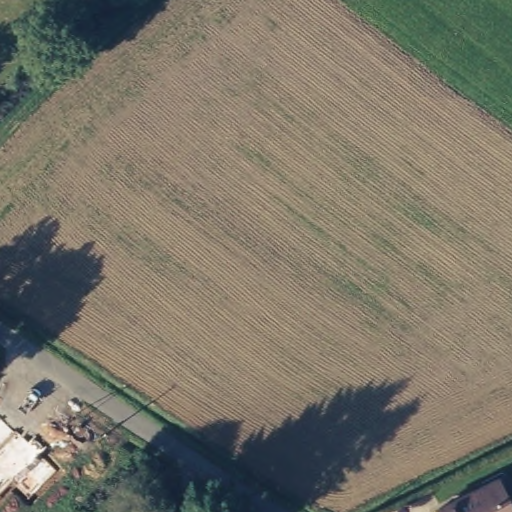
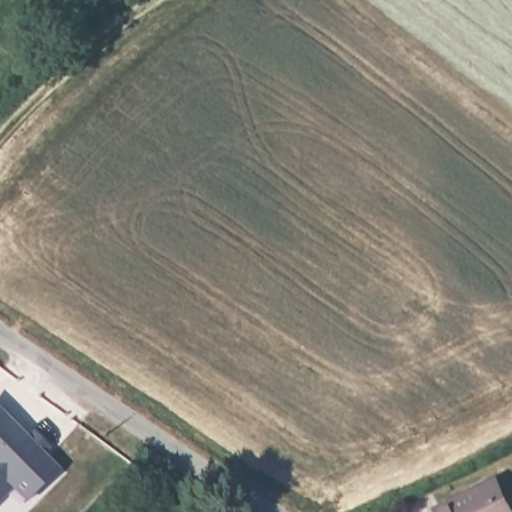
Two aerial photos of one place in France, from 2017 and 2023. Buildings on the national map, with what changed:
new [(25,436),(31,429),(52,449),(45,456),(60,470),(27,504),(12,490),(0,502),(0,411),(25,436)]
unchanged [(512,505),(512,512),(442,512),(436,500),(495,471),(512,505)]

